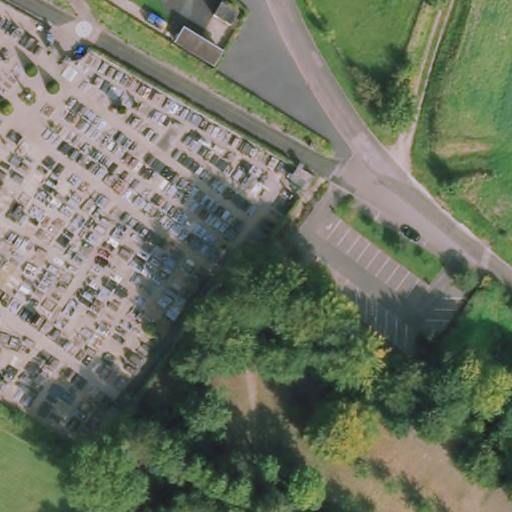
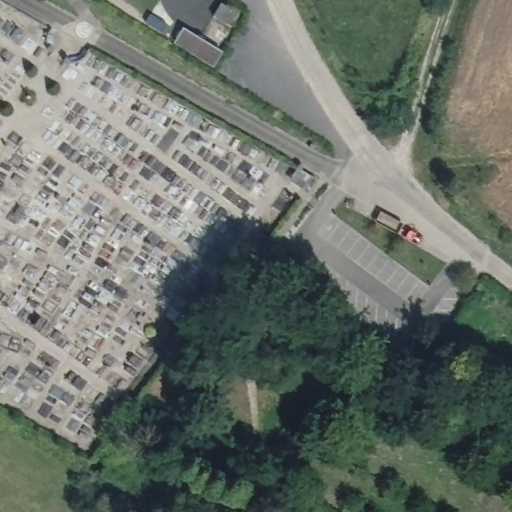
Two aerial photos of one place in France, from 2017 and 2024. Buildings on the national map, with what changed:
unchanged [(222,2),(240,13),(232,27),(214,15),(222,2)]
unchanged [(184,27),(225,53),(217,68),(175,42),(184,27)]
unchanged [(315,178),(306,190),(290,179),(299,168),(315,178)]

